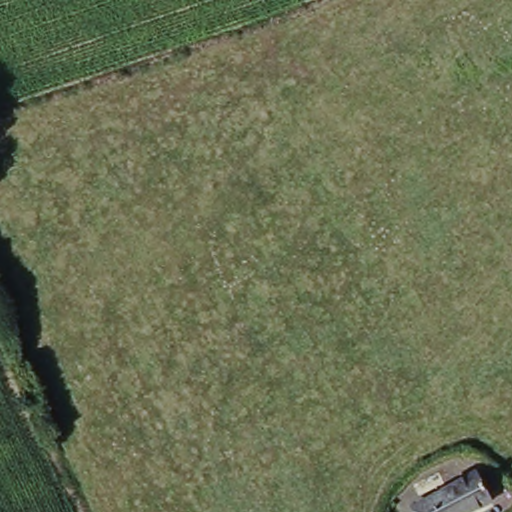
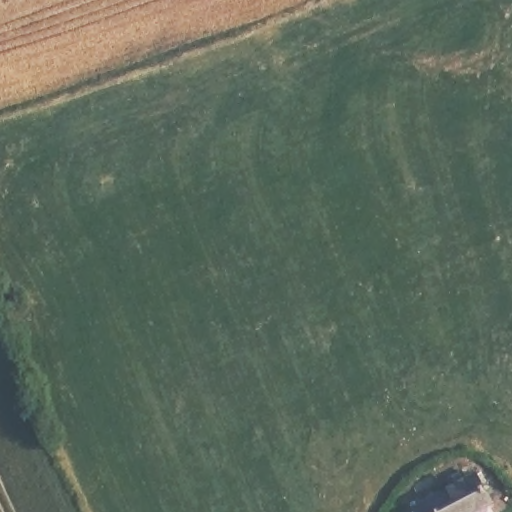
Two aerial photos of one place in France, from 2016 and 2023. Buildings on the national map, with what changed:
unchanged [(414,504),(478,468),(493,496),(465,512),(418,512),(414,504)]

